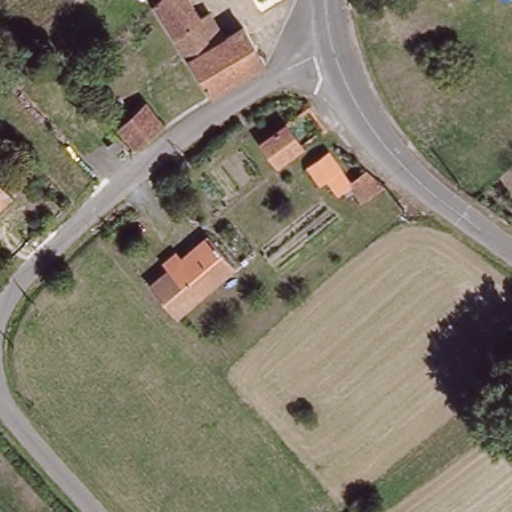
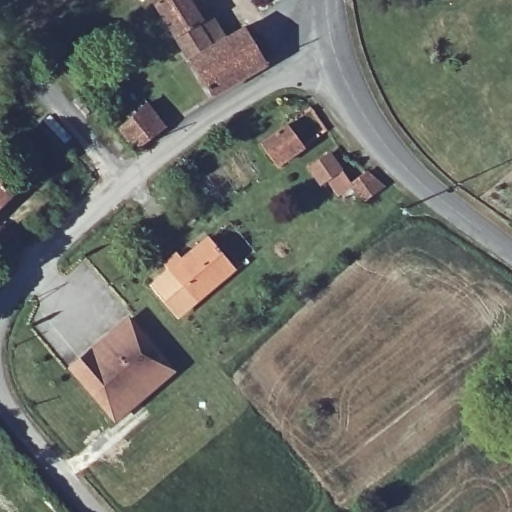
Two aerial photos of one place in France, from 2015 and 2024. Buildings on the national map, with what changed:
unchanged [(209,94),(187,61),(186,58),(150,4),(153,0),(186,0),(197,19),(206,14),(220,38),(240,26),(262,63),(209,94)]
unchanged [(164,127),(136,148),(119,126),(145,104),(164,127)]
unchanged [(257,146),(283,128),(300,151),(274,170),(257,146)]
unchanged [(330,178),(322,183),(311,168),(330,154),(352,184),(367,171),(383,187),(365,202),(352,186),(341,194),(330,178)]
unchanged [(0,182),(11,193),(0,204),(0,182)]
unchanged [(174,319),(149,290),(166,276),(161,269),(174,259),(179,265),(205,242),(230,272),(174,319)]
new [(125,317),(173,372),(113,422),(66,369),(125,317)]

